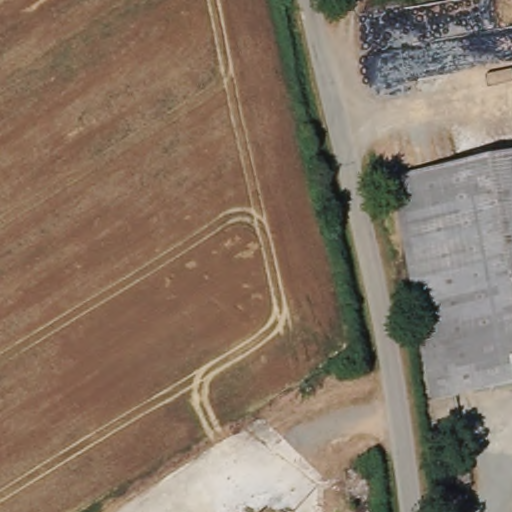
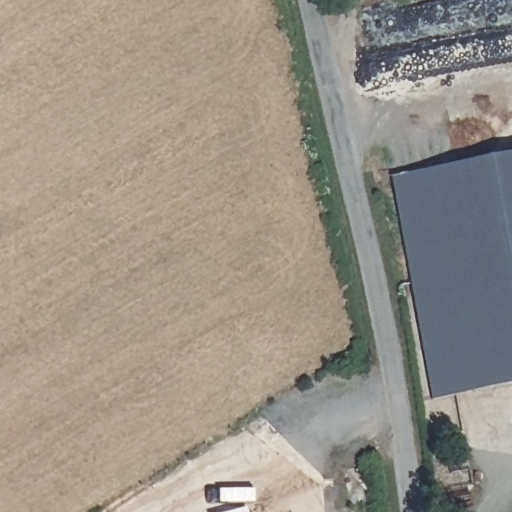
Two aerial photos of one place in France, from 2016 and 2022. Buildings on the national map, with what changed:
unchanged [(436,404),(395,186),(512,164),(512,390),(436,404)]

